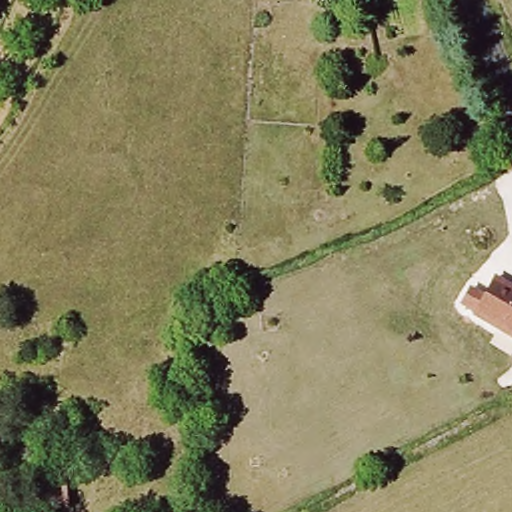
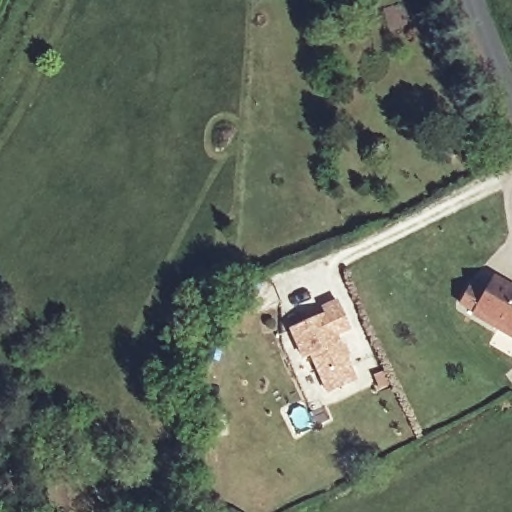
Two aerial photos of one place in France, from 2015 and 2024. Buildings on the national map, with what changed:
unchanged [(469,316),(472,311),(461,303),(469,290),(480,297),(492,275),(512,288),(512,340),(469,316)]
new [(311,357),(302,361),(289,330),(322,315),(320,307),(337,299),(352,331),(340,337),(359,380),(327,394),(311,357)]

